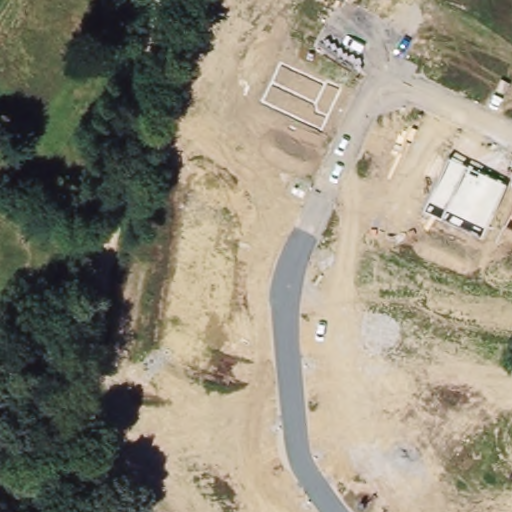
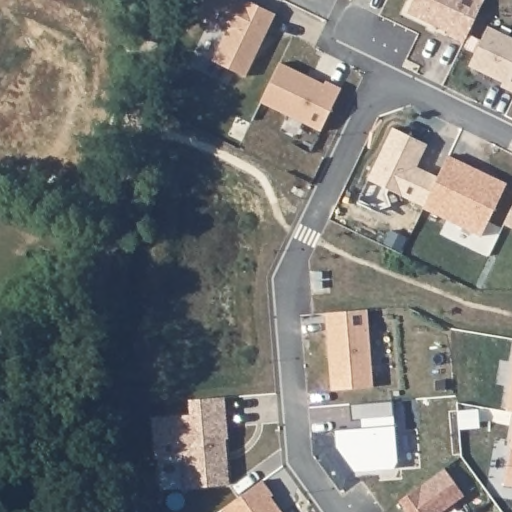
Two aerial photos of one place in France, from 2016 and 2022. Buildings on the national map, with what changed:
new [(244,0),(273,14),(243,77),(210,61),(225,32),(194,17),(202,0),(244,0)]
new [(483,0),(462,43),(445,35),(446,32),(405,12),(411,0),(483,0)]
new [(487,27),(512,38),(512,93),(500,87),(502,82),(468,66),(487,27)]
new [(277,62),(322,84),(324,81),(340,88),(319,131),(259,102),(277,62)]
new [(428,145),(417,166),(439,177),(425,208),(368,179),(392,127),(428,145)]
unchanged [(450,156),(507,184),(482,236),(425,208),(450,156)]
unchanged [(512,211),(512,230),(505,226),(512,211)]
new [(365,310),(372,387),(330,391),(324,313),(365,310)]
new [(512,374),(512,412),(505,411),(512,374)]
new [(227,485),(185,488),(182,456),(154,457),(150,418),(189,415),(188,400),(223,397),(226,439),(224,439),(226,462),(227,485)]
new [(395,424),(400,471),(358,474),(338,447),(337,430),(363,427),(362,422),(353,422),(351,407),(393,402),(395,424)]
new [(512,435),(512,486),(503,485),(512,435)]
new [(443,468),(463,496),(441,512),(406,512),(398,502),(443,468)]
new [(261,481),(272,496),(270,497),(280,512),(222,512),(221,510),(261,481)]

